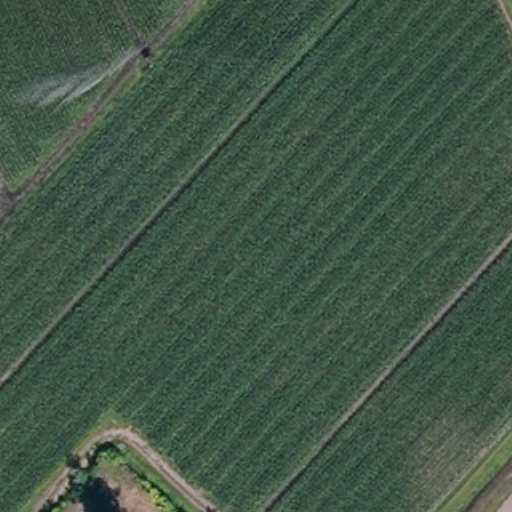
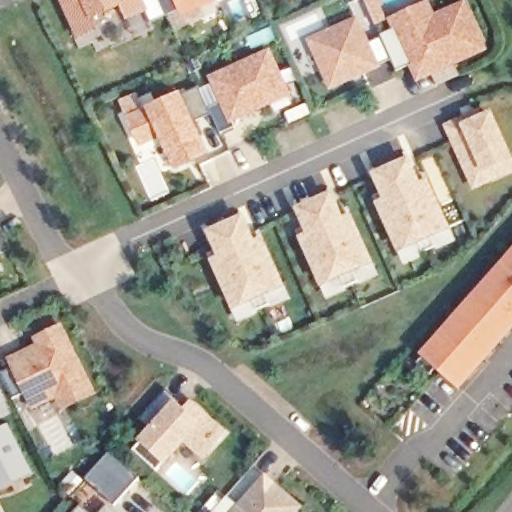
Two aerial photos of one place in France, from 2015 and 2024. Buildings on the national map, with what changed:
new [(125,4),(95,15),(101,29),(80,38),(62,0),(145,0),(150,9),(130,18),(125,4)]
new [(180,9),(169,14),(162,0),(217,0),(182,14),(180,9)]
new [(410,64),(398,70),(382,35),(396,29),(390,18),(430,0),(436,13),(466,0),(467,0),(490,51),(418,80),(410,64)]
new [(331,87),(308,39),(360,16),(381,65),(331,87)]
new [(235,121),(238,125),(223,131),(211,105),(221,99),(210,76),(272,48),(292,94),(235,121)]
new [(176,169),(166,149),(161,137),(142,146),(127,116),(147,106),(183,91),(184,94),(201,88),(212,113),(196,118),(204,136),(209,151),(176,169)]
new [(475,189),(445,125),(479,109),(481,116),(495,110),(512,150),(512,176),(475,189)]
new [(406,263),(399,250),(378,203),(386,198),(375,173),(411,156),(422,182),(432,179),(452,226),(457,240),(406,263)]
new [(328,298),(321,284),(301,235),(309,232),(297,206),(334,189),(345,215),(354,212),(375,261),(380,274),(328,298)]
new [(241,322),(232,305),(211,260),(219,256),(207,232),(246,214),(256,239),(266,237),(286,286),(291,299),(241,322)]
new [(421,353),(512,252),(512,332),(461,390),(421,353)]
new [(0,262),(2,267),(0,268),(0,262)]
new [(60,393),(36,404),(12,358),(26,351),(30,349),(41,343),(39,337),(62,324),(96,389),(80,398),(66,405),(60,393)]
new [(188,404),(195,396),(210,409),(217,416),(229,424),(207,449),(189,432),(161,464),(138,444),(179,397),(188,404)]
new [(8,416),(10,414),(35,464),(33,465),(0,482),(0,424),(10,419),(8,416)]
new [(112,466),(131,483),(116,500),(97,483),(112,466)]
new [(232,489),(245,500),(270,470),(304,499),(293,512),(217,512),(215,510),(232,489)]
new [(110,504),(119,512),(102,512),(110,504)]

